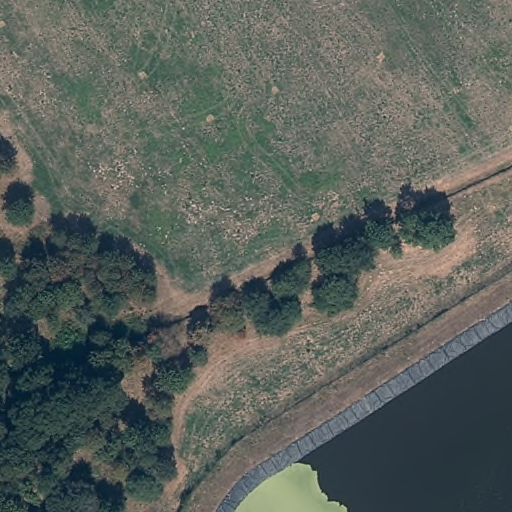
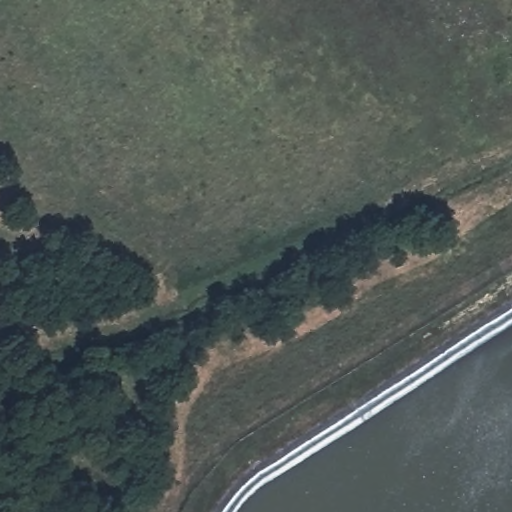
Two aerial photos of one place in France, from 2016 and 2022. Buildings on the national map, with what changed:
[]

